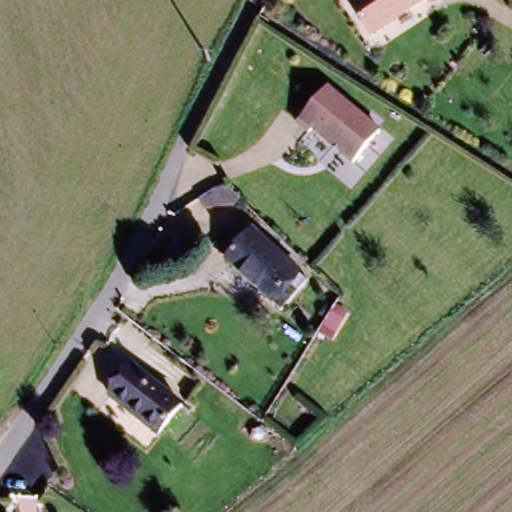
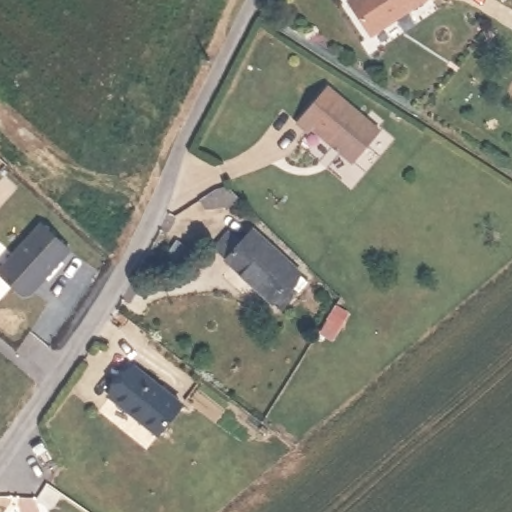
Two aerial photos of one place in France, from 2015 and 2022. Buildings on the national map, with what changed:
unchanged [(349,0),(425,0),(372,35),(349,0)]
unchanged [(313,130),(308,135),(294,121),(322,86),(380,131),(355,163),(313,130)]
new [(71,247),(46,275),(44,274),(37,281),(39,282),(31,292),(23,292),(0,271),(0,268),(42,222),(71,247)]
unchanged [(306,281),(286,300),(232,245),(251,226),(306,281)]
unchanged [(114,395),(135,367),(179,402),(158,430),(114,395)]

